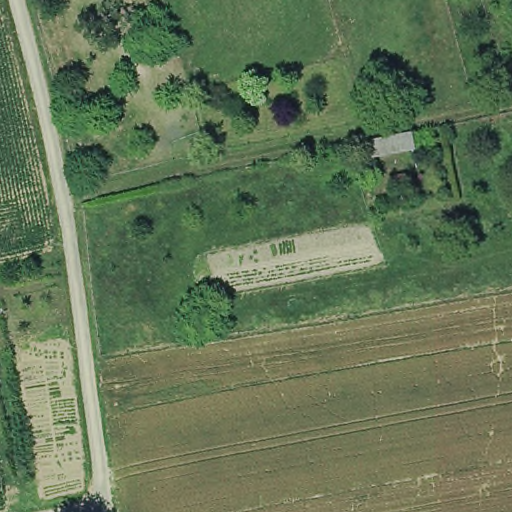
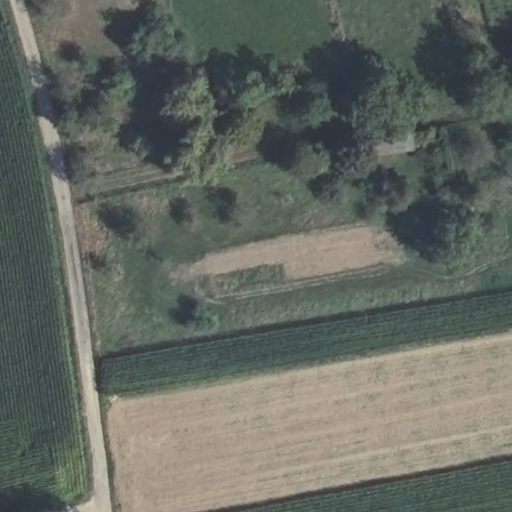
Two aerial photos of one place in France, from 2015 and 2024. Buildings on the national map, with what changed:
unchanged [(371,160),(367,142),(413,134),(415,152),(371,160)]

